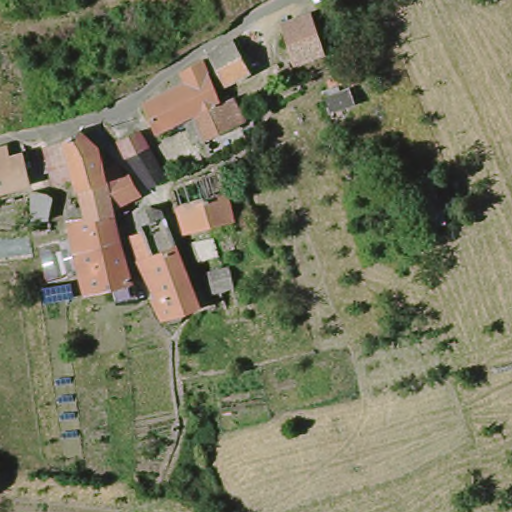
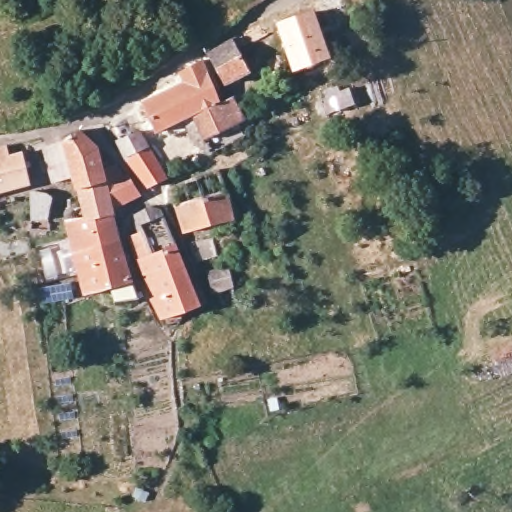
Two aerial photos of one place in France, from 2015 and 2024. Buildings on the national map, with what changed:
unchanged [(381,61),(367,17),(386,10),(400,55),(381,61)]
unchanged [(313,11),(328,59),(302,68),(287,20),(313,11)]
unchanged [(215,52),(219,49),(238,38),(252,70),(228,82),(216,55),(215,52)]
unchanged [(209,143),(200,147),(188,120),(160,132),(147,105),(155,100),(176,89),(192,80),(187,72),(207,60),(225,102),(198,114),(210,142),(209,143)]
unchanged [(322,101),(348,92),(352,106),(327,115),(322,101)]
unchanged [(240,95),(250,123),(245,125),(252,142),(215,159),(209,143),(198,114),(225,102),(240,95)]
unchanged [(162,176),(145,186),(127,161),(117,142),(117,139),(138,128),(144,138),(150,148),(165,175),(162,176)]
unchanged [(82,216),(79,205),(77,192),(73,177),(55,183),(47,149),(52,148),(82,135),(100,149),(103,148),(108,156),(111,161),(118,177),(125,175),(133,194),(127,199),(118,204),(111,208),(112,211),(113,220),(118,240),(75,251),(67,220),(67,218),(82,216)]
unchanged [(27,188),(0,195),(0,155),(3,154),(5,161),(20,157),(27,188)]
unchanged [(187,177),(200,175),(212,173),(225,219),(215,222),(200,226),(181,231),(170,184),(187,177)]
unchanged [(456,223),(425,234),(410,182),(438,174),(456,223)]
unchanged [(27,225),(28,203),(30,194),(38,194),(47,199),(45,221),(27,225)]
unchanged [(175,309),(163,314),(152,298),(156,295),(137,257),(123,226),(135,220),(131,211),(143,202),(149,213),(155,211),(160,209),(167,224),(176,243),(180,252),(185,266),(190,277),(197,299),(175,309)]
unchanged [(222,255),(217,256),(205,259),(199,261),(193,241),(217,235),(222,255)]
unchanged [(140,295),(118,304),(113,283),(89,290),(87,291),(75,251),(118,240),(125,276),(140,295)]
unchanged [(210,267),(227,264),(238,302),(223,306),(219,288),(215,289),(210,267)]

